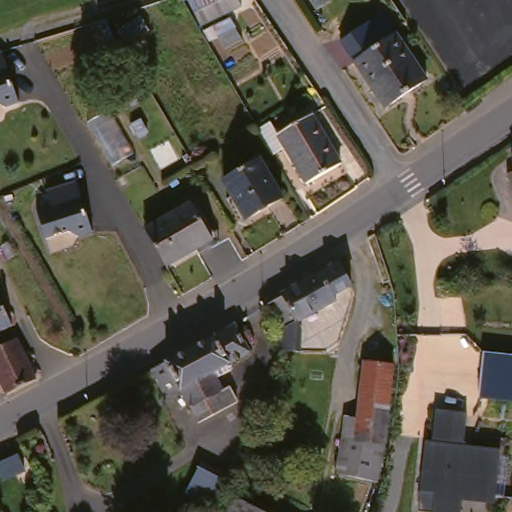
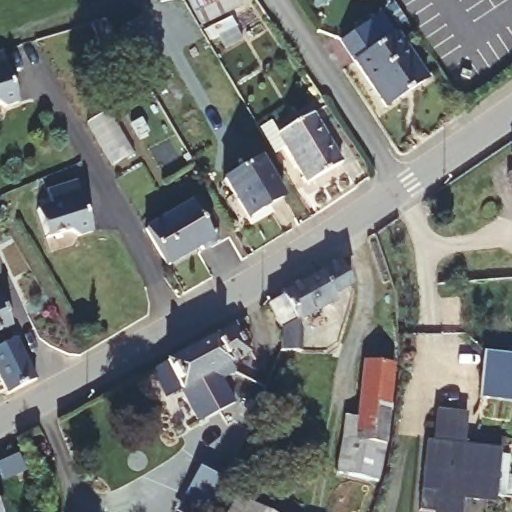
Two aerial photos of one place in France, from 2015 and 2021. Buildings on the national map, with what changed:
unchanged [(200,21),(193,0),(237,0),(240,7),(200,21)]
unchanged [(142,23),(148,34),(125,46),(119,34),(142,23)]
unchanged [(346,54),(372,35),(380,46),(397,32),(427,74),(382,106),(353,65),(346,54)]
unchanged [(1,55),(17,106),(3,111),(0,110),(0,56),(1,55)]
unchanged [(338,164),(304,185),(274,134),(308,113),(338,164)]
unchanged [(245,220),(242,215),(238,218),(227,200),(232,197),(224,182),(258,162),(281,199),(245,220)]
unchanged [(512,172),(512,176),(511,172),(512,172)]
unchanged [(47,210),(52,209),(47,194),(77,184),(93,235),(79,240),(69,235),(62,237),(47,242),(37,213),(47,210)]
unchanged [(189,203),(211,241),(164,269),(141,229),(189,203)]
unchanged [(284,296),(322,272),(340,260),(355,284),(335,295),(337,299),(337,302),(300,323),(284,296)]
unchanged [(299,357),(282,353),(287,335),(272,304),(284,296),(300,323),(305,329),(299,357)]
unchanged [(9,327),(0,331),(0,307),(9,327)]
unchanged [(160,394),(145,371),(165,364),(231,325),(250,355),(212,375),(223,392),(227,389),(237,404),(210,420),(207,416),(199,421),(180,390),(171,396),(160,394)]
unchanged [(0,373),(0,350),(17,342),(36,379),(36,381),(10,394),(0,373)]
unchanged [(512,401),(477,396),(483,351),(512,355),(512,401)]
unchanged [(355,382),(367,383),(369,360),(397,361),(400,362),(393,429),(392,431),(385,475),(357,468),(347,465),(352,432),(355,382)]
unchanged [(430,441),(435,406),(467,409),(463,445),(501,448),(495,505),(465,502),(463,512),(429,512),(419,510),(425,442),(430,441)]
unchanged [(228,477),(210,507),(184,492),(200,461),(228,477)]
unchanged [(262,512),(236,512),(242,500),(262,512)]

